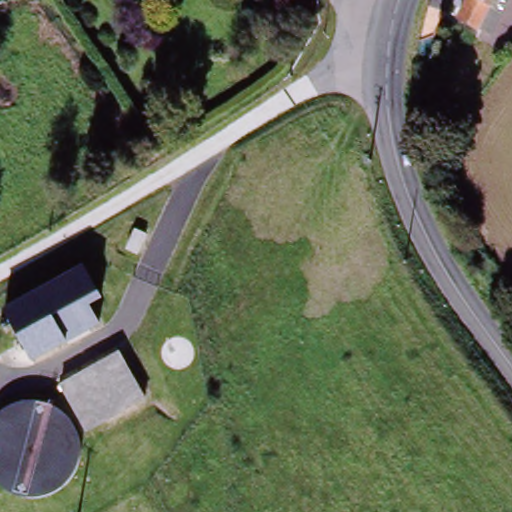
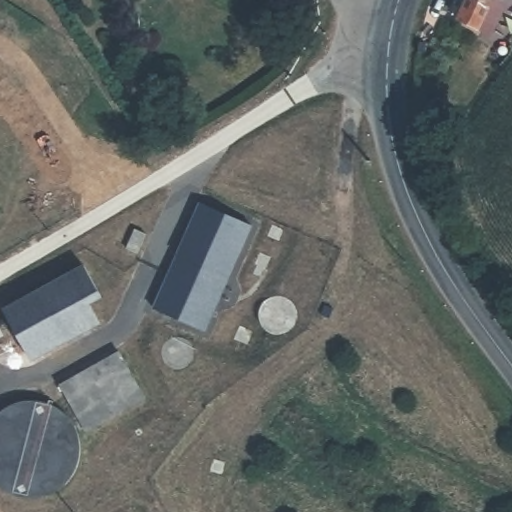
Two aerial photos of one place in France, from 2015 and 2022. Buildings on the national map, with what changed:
unchanged [(492,28),(459,16),(466,0),(503,0),(492,28)]
new [(197,204),(248,224),(207,331),(154,311),(197,204)]
unchanged [(106,303),(91,312),(99,327),(33,364),(3,311),(84,265),(106,303)]
unchanged [(149,401),(88,436),(59,387),(120,354),(149,401)]

